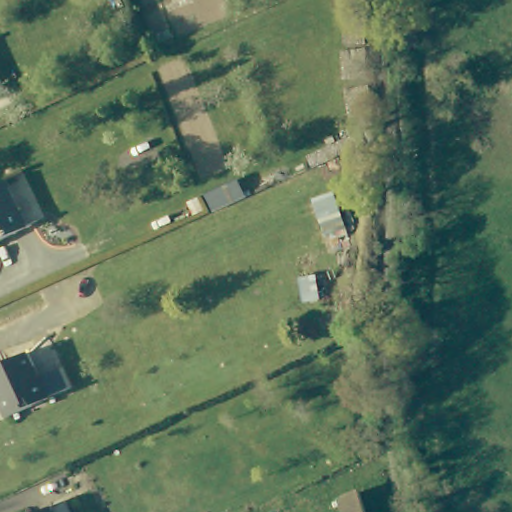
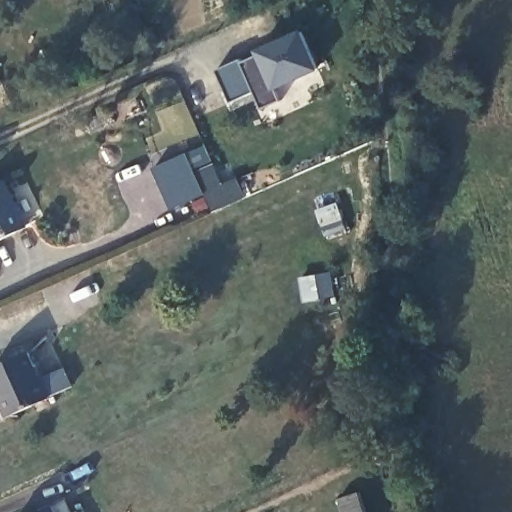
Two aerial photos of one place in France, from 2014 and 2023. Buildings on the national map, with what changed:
new [(278,91),(281,101),(262,108),(254,92),(231,101),(216,72),(257,55),(255,51),(302,31),(321,70),(278,91)]
new [(212,212),(206,195),(171,211),(151,169),(184,153),(195,174),(214,165),(222,184),(237,178),(245,198),(212,212)]
unchanged [(26,229),(0,240),(0,185),(6,183),(26,229)]
unchanged [(9,417),(0,396),(0,366),(27,355),(47,401),(9,417)]
unchanged [(355,494),(360,512),(337,512),(333,501),(355,494)]
unchanged [(58,512),(45,512),(56,507),(58,512)]

